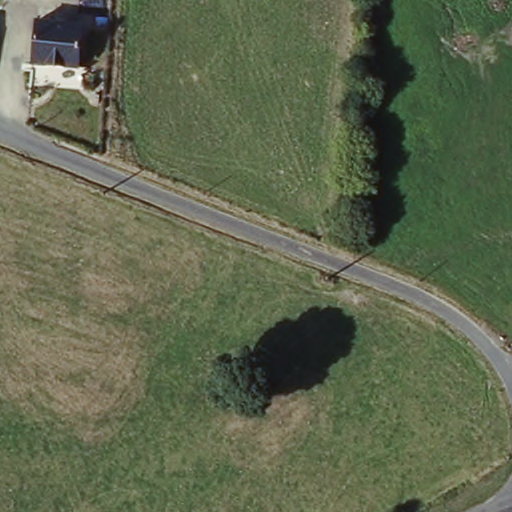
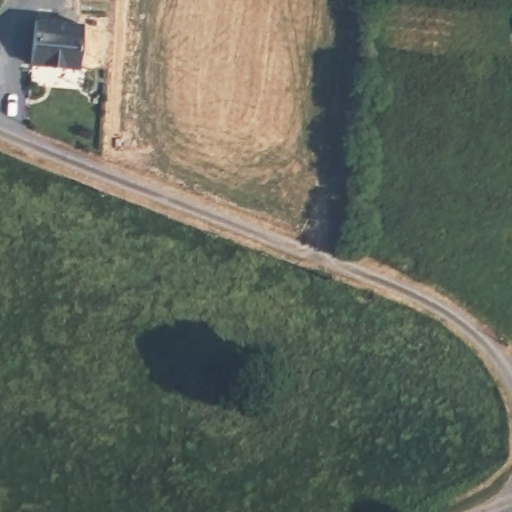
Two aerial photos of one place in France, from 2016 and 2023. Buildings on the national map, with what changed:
unchanged [(31,64),(35,20),(81,24),(78,68),(31,64)]

